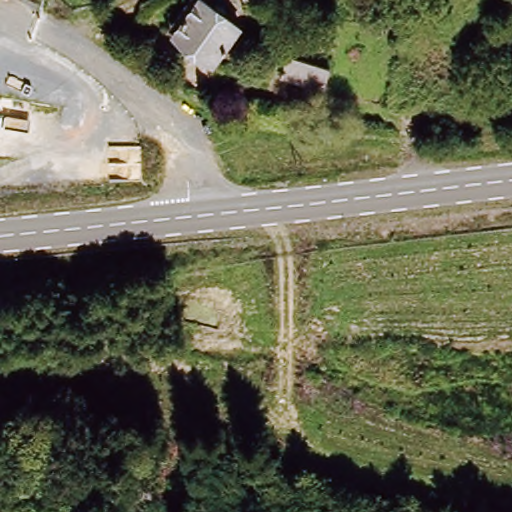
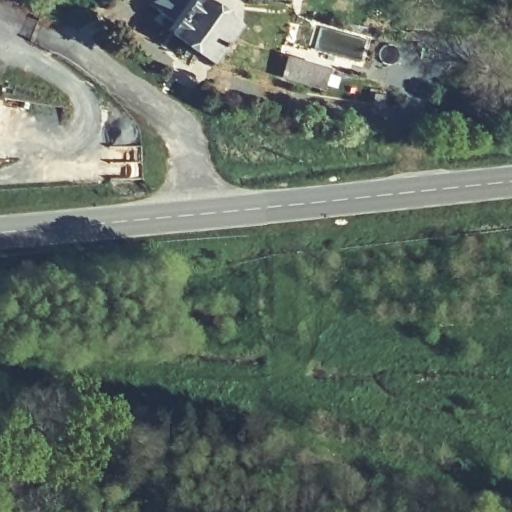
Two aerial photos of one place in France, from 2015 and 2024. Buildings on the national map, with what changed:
unchanged [(174,37),(200,0),(240,26),(215,63),(174,37)]
unchanged [(280,76),(290,56),(305,62),(330,72),(320,94),(295,83),(280,76)]

